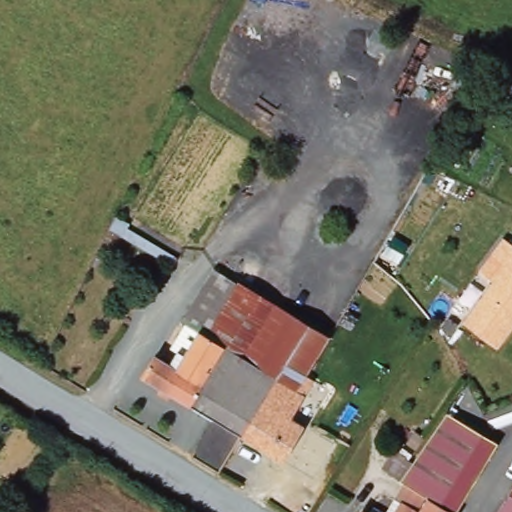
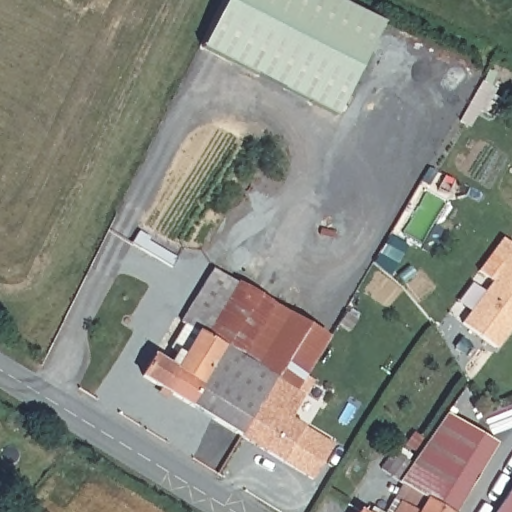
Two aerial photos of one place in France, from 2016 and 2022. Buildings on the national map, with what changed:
new [(202,47),(226,0),(336,0),(384,25),(338,115),(202,47)]
unchanged [(461,317),(503,260),(488,249),(501,232),(512,240),(512,317),(494,342),(461,317)]
unchanged [(251,359),(217,417),(143,373),(155,352),(165,360),(176,347),(189,323),(181,318),(192,298),(212,266),(237,279),(327,332),(302,373),(262,343),(222,318),(232,296),(227,296),(207,332),(251,359)]
unchanged [(251,359),(275,373),(240,432),(217,417),(251,359)]
unchanged [(275,373),(295,386),(303,391),(288,412),(304,422),(282,458),(260,443),(240,432),(275,373)]
unchanged [(411,491),(402,484),(402,485),(402,486),(392,479),(377,467),(389,448),(403,457),(418,438),(420,439),(427,445),(448,412),(490,440),(497,445),(495,449),(453,512),(413,512),(421,500),(411,491)]
unchanged [(512,512),(497,512),(512,488),(512,512)]
unchanged [(407,511),(407,512),(388,512),(395,502),(407,511)]
unchanged [(377,512),(363,512),(368,507),(377,512)]
unchanged [(360,512),(354,512),(356,510),(360,512)]

